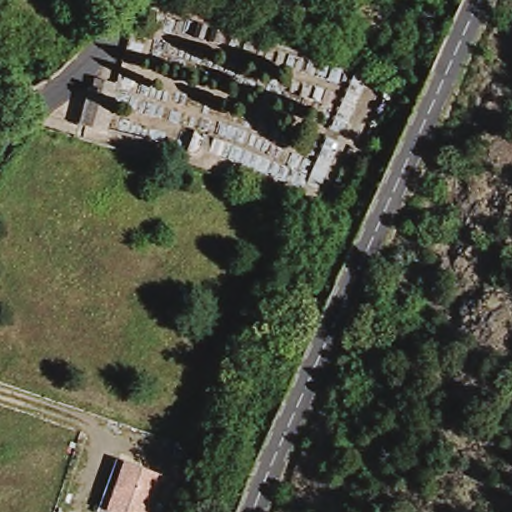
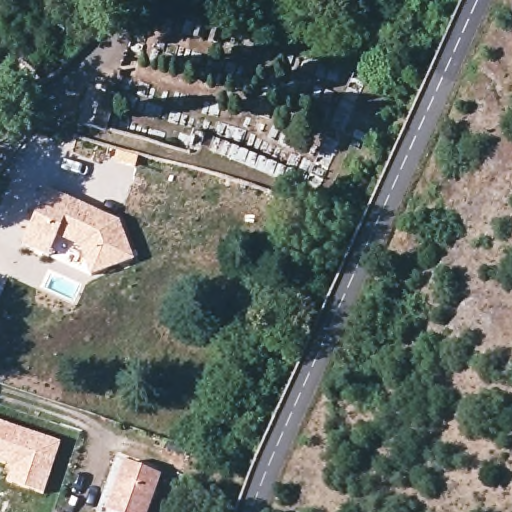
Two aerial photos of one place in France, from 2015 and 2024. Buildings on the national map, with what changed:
demolished [(16,98),(0,97),(0,76),(35,79),(23,89),(16,98)]
unchanged [(92,125),(81,122),(87,106),(92,89),(96,91),(99,81),(117,87),(115,92),(119,94),(107,130),(92,125)]
new [(47,187),(119,219),(135,258),(92,275),(80,249),(58,237),(49,256),(22,244),(47,187)]
new [(43,494),(3,481),(8,467),(0,464),(0,420),(61,441),(43,494)]
unchanged [(157,471),(144,512),(98,512),(115,459),(157,471)]

